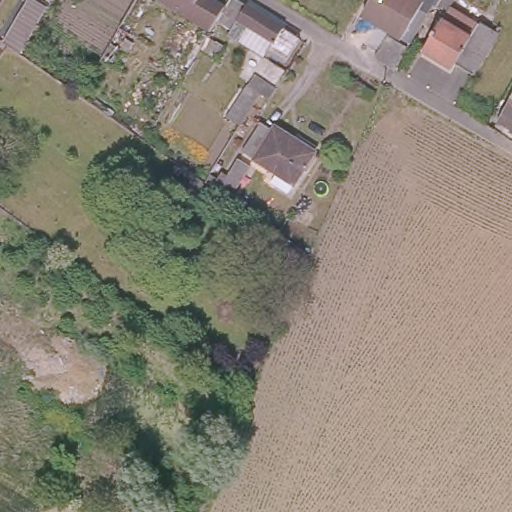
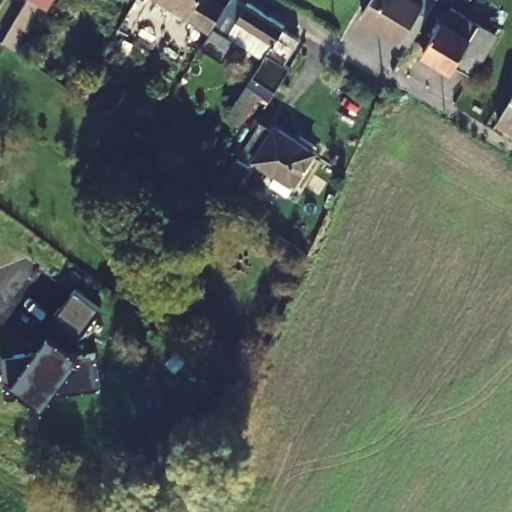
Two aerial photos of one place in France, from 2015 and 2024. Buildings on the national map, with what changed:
unchanged [(27,46),(6,35),(28,0),(33,0),(50,11),(27,46)]
unchanged [(121,23),(135,0),(151,0),(132,30),(121,23)]
unchanged [(170,0),(178,0),(176,4),(170,0)]
unchanged [(250,0),(253,0),(286,21),(285,24),(302,34),(288,58),(271,48),(276,38),(224,6),(217,17),(213,24),(190,10),(197,0),(223,0),(226,2),(227,0),(249,0),(250,1),(250,0)]
unchanged [(357,15),(365,0),(415,0),(444,0),(438,11),(425,5),(411,31),(405,43),(357,15)]
unchanged [(491,31),(467,71),(451,61),(446,69),(417,51),(435,18),(450,26),(459,11),(491,31)]
unchanged [(401,48),(390,70),(385,70),(366,58),(380,36),(401,48)]
unchanged [(275,89),(268,99),(246,85),(252,75),(275,89)]
unchanged [(512,126),(497,119),(512,90),(512,126)]
unchanged [(286,180),(291,171),(254,148),(272,119),(286,126),(287,124),(326,149),(306,181),(301,189),(286,180)]
unchanged [(262,164),(240,200),(222,187),(225,183),(231,173),(235,176),(249,155),(262,164)]
new [(51,397),(41,410),(25,398),(5,399),(1,360),(33,356),(50,333),(46,330),(73,292),(98,310),(71,350),(81,359),(94,354),(101,390),(51,397)]

